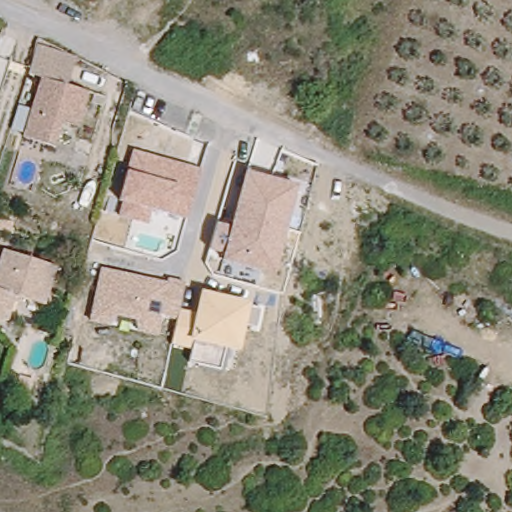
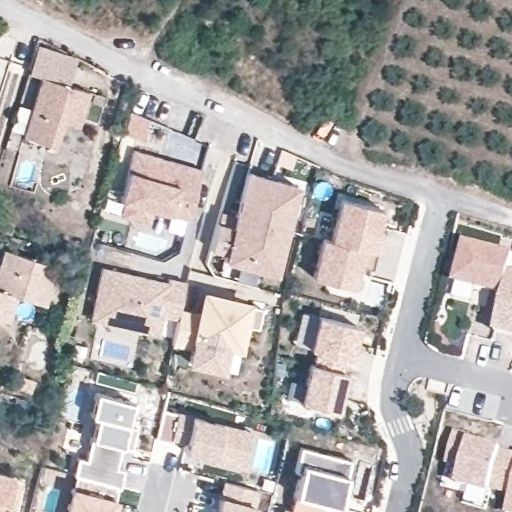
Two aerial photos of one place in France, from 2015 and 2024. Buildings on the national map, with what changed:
unchanged [(26,74),(37,44),(77,59),(69,89),(44,80),(26,74)]
unchanged [(69,89),(86,96),(76,126),(60,122),(53,145),(26,137),(44,80),(69,89)]
new [(290,168),(276,161),(282,149),(296,155),(290,168)]
unchanged [(123,197),(119,195),(126,167),(131,151),(200,169),(188,218),(168,211),(153,208),(148,223),(119,214),(123,197)]
unchanged [(208,249),(214,222),(218,211),(233,215),(243,172),(298,185),(274,271),(223,260),(224,253),(208,249)]
new [(380,235),(376,251),(331,240),(341,198),(381,208),(378,221),(384,222),(380,235)]
new [(0,230),(0,218),(13,222),(10,233),(0,230)]
new [(323,238),(331,240),(376,251),(371,269),(357,265),(351,287),(313,277),(323,238)]
new [(467,244),(512,256),(512,270),(511,274),(506,295),(457,283),(467,244)]
unchanged [(43,310),(21,303),(13,325),(0,320),(0,286),(9,259),(56,274),(43,310)]
unchanged [(100,269),(183,285),(178,310),(195,313),(199,291),(250,301),(249,307),(261,309),(257,329),(243,327),(238,351),(224,348),(220,369),(188,363),(191,348),(171,344),(177,319),(163,316),(159,334),(136,329),(133,319),(117,314),(108,325),(90,318),(100,269)]
new [(506,295),(511,274),(512,274),(512,336),(496,332),(506,295)]
new [(319,316),(357,326),(349,358),(311,348),(319,316)]
new [(310,363),(345,373),(336,410),(300,401),(310,363)]
new [(34,379),(30,392),(6,384),(10,371),(34,379)]
new [(76,456),(84,458),(94,417),(89,415),(95,392),(131,401),(124,424),(134,426),(129,448),(119,445),(114,466),(121,467),(117,485),(72,474),(76,456)]
new [(193,415),(222,423),(251,430),(241,471),(213,460),(183,452),(184,443),(156,437),(163,409),(193,415)]
new [(454,434),(471,438),(469,441),(502,449),(501,452),(512,455),(512,489),(512,491),(492,486),(491,492),(458,484),(462,467),(447,463),(454,434)]
new [(344,498),(341,497),(338,507),(324,504),(322,512),(298,512),(291,510),(294,496),(299,474),(295,472),(301,447),(353,460),(344,498)]
new [(5,508),(13,510),(12,512),(0,512),(0,474),(13,477),(5,508)]
new [(77,475),(117,485),(120,487),(118,501),(115,512),(64,512),(70,487),(75,488),(77,475)]
new [(257,489),(252,512),(214,512),(223,480),(257,489)]
new [(512,489),(512,512),(506,512),(508,504),(512,491),(512,489)]
new [(298,512),(284,512),(284,508),(298,512)]

